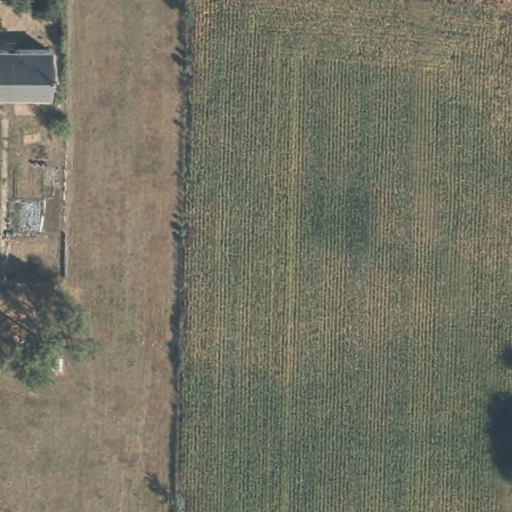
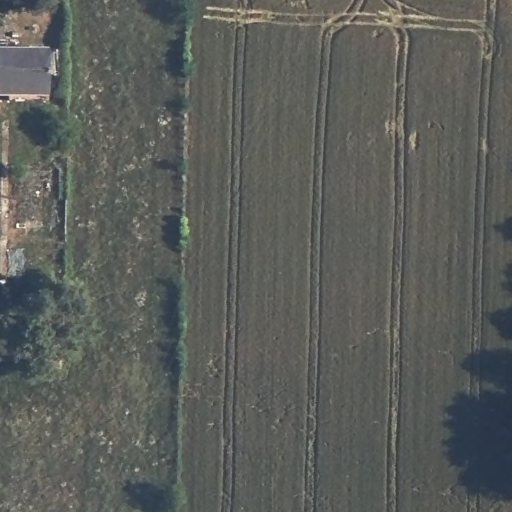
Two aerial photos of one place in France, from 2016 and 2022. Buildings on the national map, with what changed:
unchanged [(50,90),(0,92),(0,46),(50,45),(50,90)]

